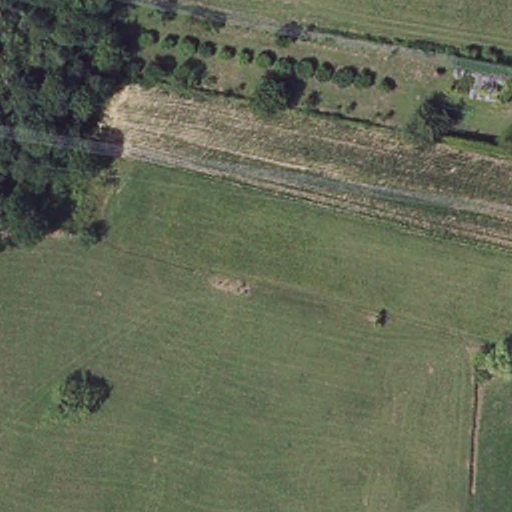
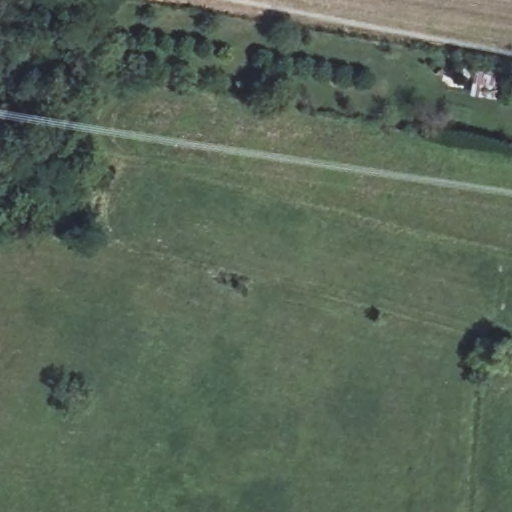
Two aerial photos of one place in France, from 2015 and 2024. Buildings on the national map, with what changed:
unchanged [(509,86),(492,84),(488,101),(469,97),(471,84),(457,82),(457,69),(512,78),(512,81),(509,86)]

